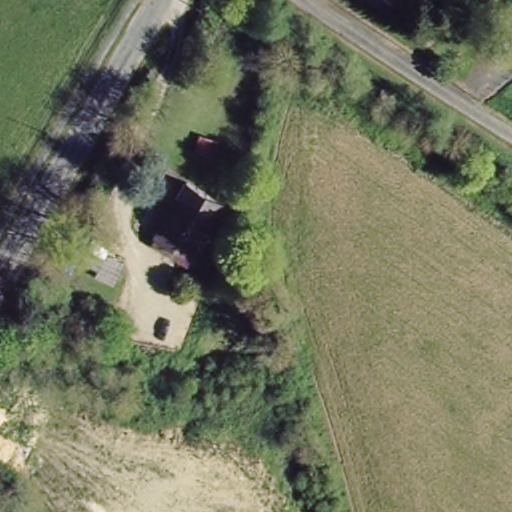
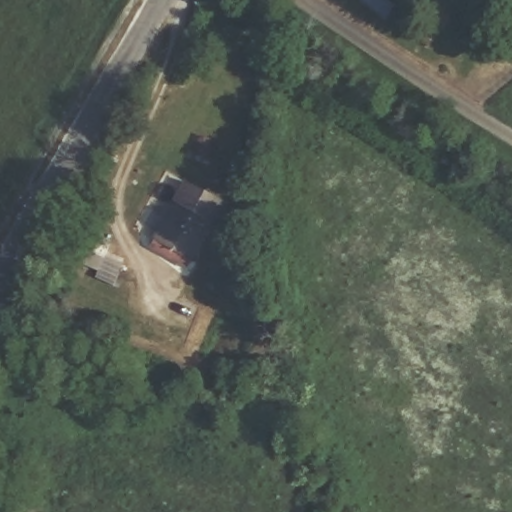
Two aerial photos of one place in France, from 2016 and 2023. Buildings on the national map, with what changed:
unchanged [(366,0),(382,0),(394,8),(387,18),(364,2),(366,0)]
unchanged [(408,6),(432,25),(424,35),(434,43),(428,50),(394,23),(408,6)]
unchanged [(149,239),(153,232),(188,177),(221,198),(188,254),(184,261),(149,239)]

